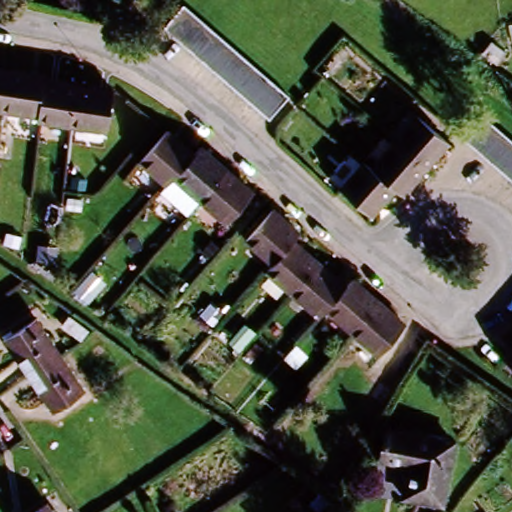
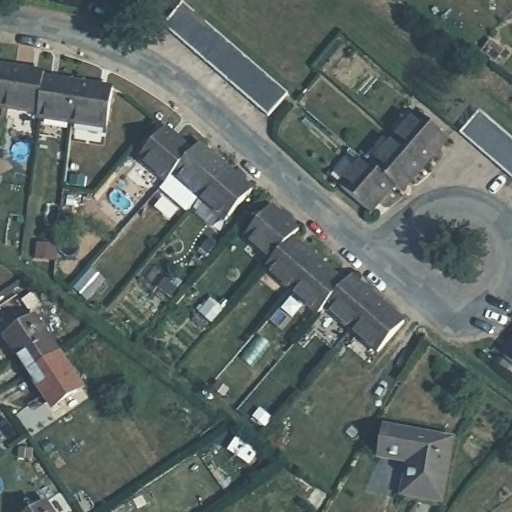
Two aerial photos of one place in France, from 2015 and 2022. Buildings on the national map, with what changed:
unchanged [(236,85),(226,76),(216,66),(206,57),(195,48),(186,39),(176,30),(164,19),(182,0),(183,0),(194,10),(204,20),(213,28),(224,37),(234,47),(244,57),(254,66),(264,75),(265,75),(275,85),(284,92),(265,112),(256,105),(246,95),(236,85)]
unchanged [(6,102),(0,101),(0,62),(11,64),(6,102)]
unchanged [(48,69),(46,74),(42,107),(6,102),(11,64),(48,69)]
unchanged [(41,114),(42,107),(46,74),(81,80),(76,119),(41,114)]
unchanged [(116,84),(111,123),(76,119),(81,80),(116,84)]
unchanged [(414,109),(446,134),(423,162),(391,136),(414,109)]
unchanged [(494,159),(484,150),(473,141),(464,133),(481,112),(491,120),(494,123),(502,130),(512,138),(512,174),(506,169),(494,159)]
unchanged [(200,189),(188,204),(161,180),(166,174),(141,151),(164,124),(191,146),(198,137),(224,160),(252,184),(227,212),(200,189)]
unchanged [(391,136),(423,162),(401,190),(393,183),(369,164),(391,136)]
unchanged [(369,164),(393,183),(371,210),(340,185),(363,159),(369,164)]
unchanged [(248,235),(271,207),(296,229),(291,236),(273,256),(248,235)]
unchanged [(318,260),(293,287),(266,264),(273,256),(291,236),(318,260)]
unchanged [(344,282),(325,302),(319,310),(293,287),(318,260),(344,282)]
unchanged [(325,302),(344,282),(351,274),(379,298),(354,326),(325,302)]
unchanged [(404,320),(379,349),(354,326),(379,298),(404,320)]
unchanged [(12,337),(18,334),(13,328),(37,312),(61,348),(33,368),(12,337)]
unchanged [(503,351),(512,340),(512,358),(503,351)]
unchanged [(61,348),(85,385),(63,400),(58,394),(53,397),(33,368),(61,348)]
unchanged [(403,492),(410,460),(379,453),(386,425),(455,440),(442,500),(403,492)]
unchanged [(48,498),(57,512),(28,512),(48,498)]

